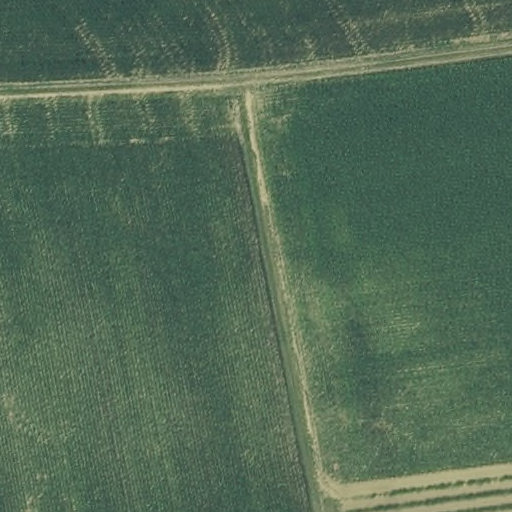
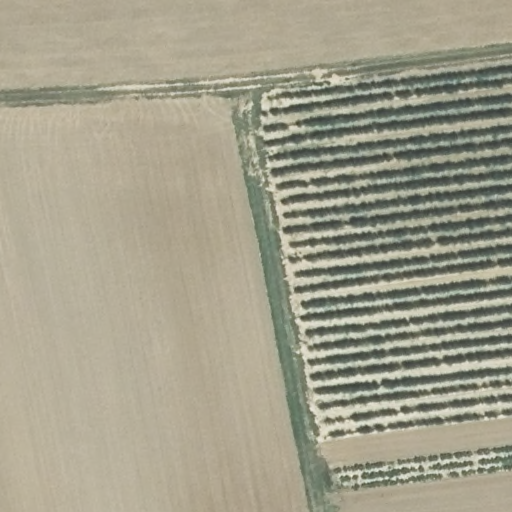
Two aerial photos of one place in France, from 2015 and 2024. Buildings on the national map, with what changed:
[]

